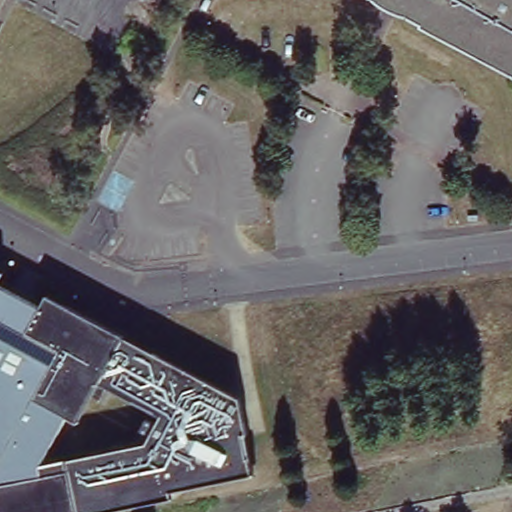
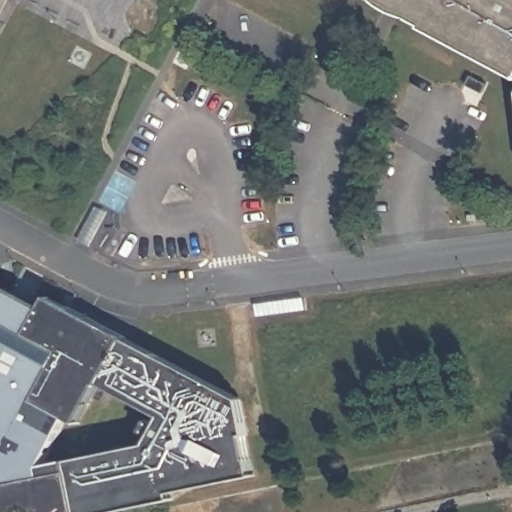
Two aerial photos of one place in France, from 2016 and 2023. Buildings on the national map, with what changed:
unchanged [(210,0),(206,1),(206,0),(210,0)]
unchanged [(372,0),(388,0),(385,6),(372,0)]
unchanged [(385,6),(388,0),(412,0),(403,16),(385,6)]
unchanged [(427,26),(426,27),(403,16),(412,0),(512,0),(512,70),(427,26)]
unchanged [(95,381),(52,462),(42,479),(70,481),(77,512),(0,512),(0,280),(117,337),(95,381)]
unchanged [(70,481),(42,479),(52,462),(152,440),(162,412),(95,381),(117,337),(241,395),(257,471),(176,488),(177,496),(95,512),(77,512),(70,481)]

